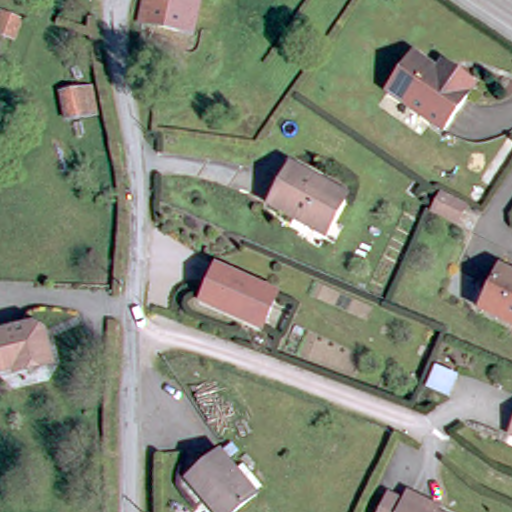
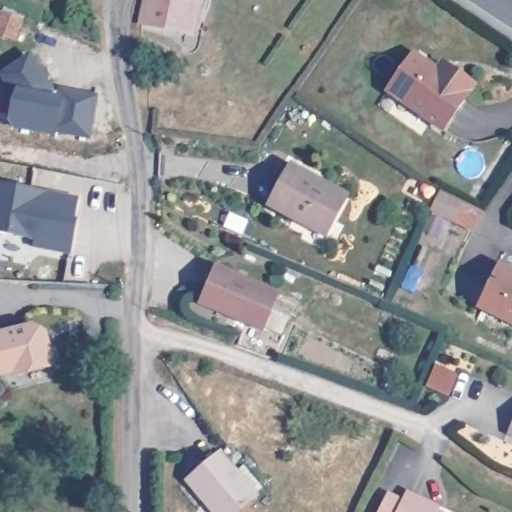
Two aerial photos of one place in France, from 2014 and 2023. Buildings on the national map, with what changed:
unchanged [(149,19),(139,16),(145,0),(199,0),(187,29),(149,19)]
unchanged [(434,69),(447,52),(478,78),(439,126),(389,88),(416,54),(434,69)]
new [(29,57),(52,90),(50,99),(59,101),(61,91),(95,97),(88,136),(54,130),(54,134),(14,128),(10,121),(14,102),(16,102),(18,94),(15,89),(12,91),(3,76),(29,57)]
unchanged [(349,192),(326,233),(271,202),(294,160),(349,192)]
new [(71,254),(35,248),(35,239),(0,233),(0,183),(81,195),(71,254)]
unchanged [(443,224),(420,212),(430,191),(454,204),(443,224)]
unchanged [(274,293),(261,325),(196,296),(211,262),(274,293)]
unchanged [(512,269),(512,314),(483,301),(502,264),(512,269)]
unchanged [(55,358),(0,375),(0,333),(31,324),(47,332),(55,358)]
unchanged [(509,423),(512,416),(512,425),(509,423)]
unchanged [(220,512),(208,497),(204,501),(187,480),(218,454),(253,494),(232,512),(220,512)]
unchanged [(406,497),(412,483),(443,496),(438,510),(441,512),(374,512),(384,487),(406,497)]

